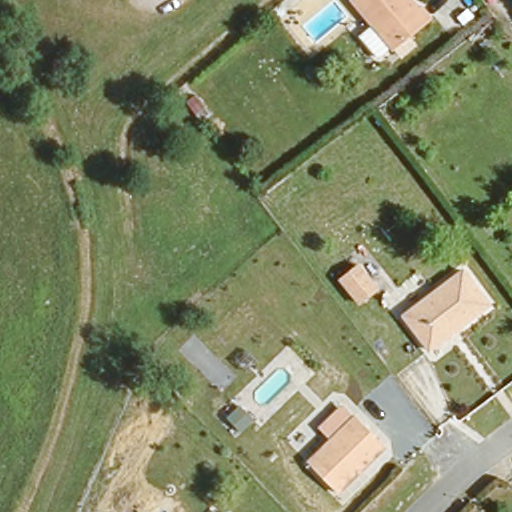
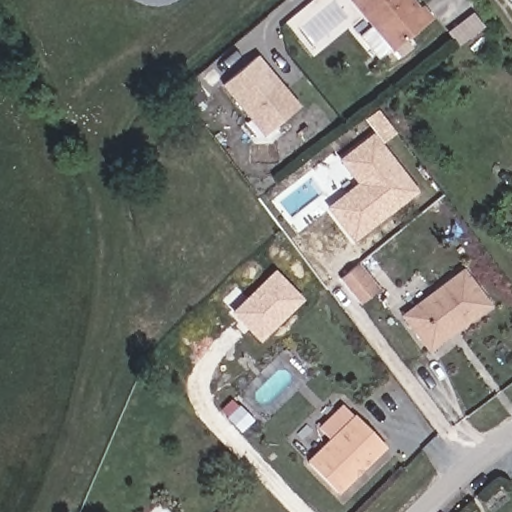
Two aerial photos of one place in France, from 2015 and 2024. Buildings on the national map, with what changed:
unchanged [(417,6),(420,4),(430,14),(392,46),(353,0),(412,0),(417,6)]
new [(476,15),(486,28),(469,42),(463,47),(452,34),(459,29),(476,15)]
new [(256,55),(300,106),(263,137),(220,85),(256,55)]
new [(356,184),(338,160),(372,132),(363,120),(376,109),(395,132),(381,144),(417,191),(352,243),(325,208),(356,184)]
unchanged [(388,287),(371,301),(351,276),(368,262),(388,287)]
unchanged [(485,293),(425,343),(397,311),(458,262),(485,293)]
new [(274,270),(303,300),(260,343),(230,313),(274,270)]
unchanged [(316,427),(339,402),(350,412),(353,408),(387,437),(339,492),(306,463),(327,437),(316,427)]
unchanged [(266,431),(255,442),(243,432),(255,420),(266,431)]

